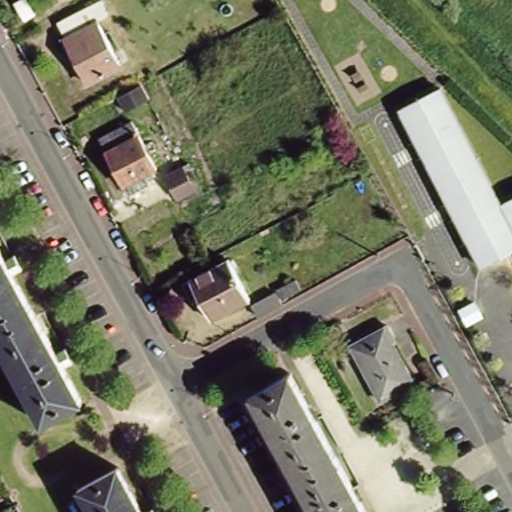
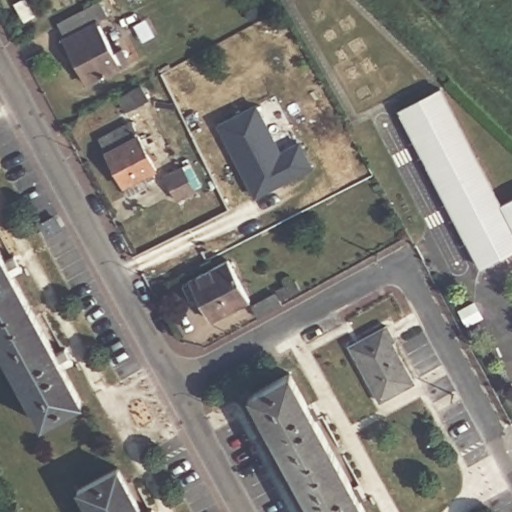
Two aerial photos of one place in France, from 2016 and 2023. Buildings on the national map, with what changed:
unchanged [(101,19),(91,25),(114,66),(85,82),(53,25),(93,3),(101,19)]
unchanged [(152,100),(128,112),(120,97),(143,84),(152,100)]
unchanged [(484,263),(406,107),(445,87),(502,201),(512,196),(512,249),(484,263)]
new [(257,105),(280,154),(300,143),(313,168),(257,196),(220,123),(257,105)]
unchanged [(95,135),(127,117),(153,165),(148,168),(150,172),(141,176),(144,181),(125,191),(95,135)]
unchanged [(201,196),(184,205),(168,176),(186,166),(201,196)]
unchanged [(45,421),(0,337),(0,240),(85,400),(45,421)]
unchanged [(180,283),(225,259),(245,299),(207,319),(197,299),(190,303),(180,283)]
unchanged [(250,305),(275,291),(280,303),(256,316),(250,305)]
unchanged [(393,340),(390,342),(412,383),(379,401),(348,345),(385,325),(393,340)]
unchanged [(286,371),(362,512),(311,512),(246,392),(286,371)]
unchanged [(118,470),(141,512),(91,512),(80,491),(118,470)]

